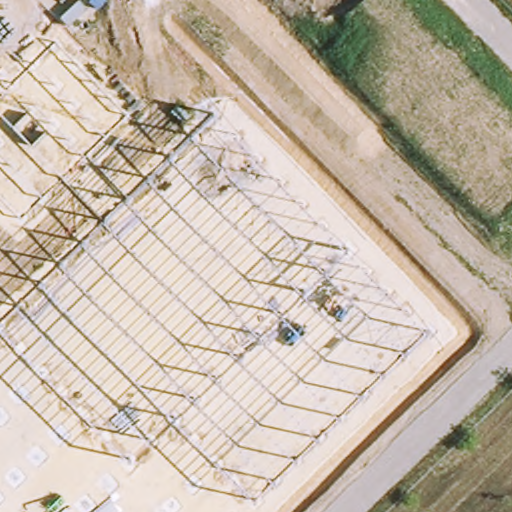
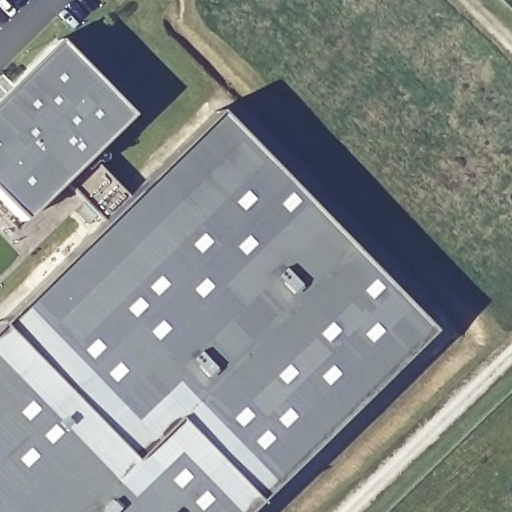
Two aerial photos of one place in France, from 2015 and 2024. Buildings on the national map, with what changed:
new [(55,40),(130,115),(88,156),(64,179),(21,222),(0,200),(0,95),(55,40)]
new [(246,512),(0,512),(0,320),(103,219),(128,195),(215,110),(430,331),(246,512)]
unchanged [(88,156),(128,195),(103,219),(64,179),(88,156)]

